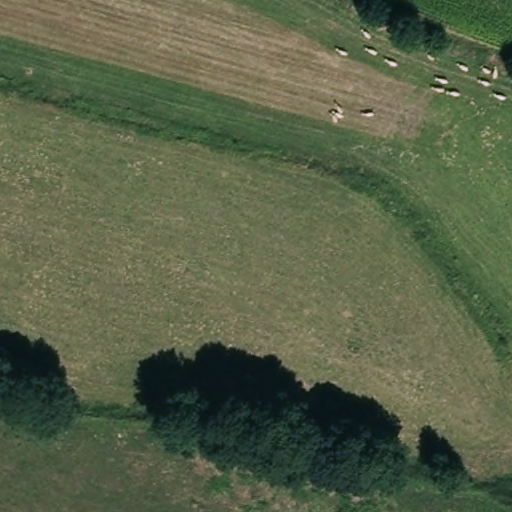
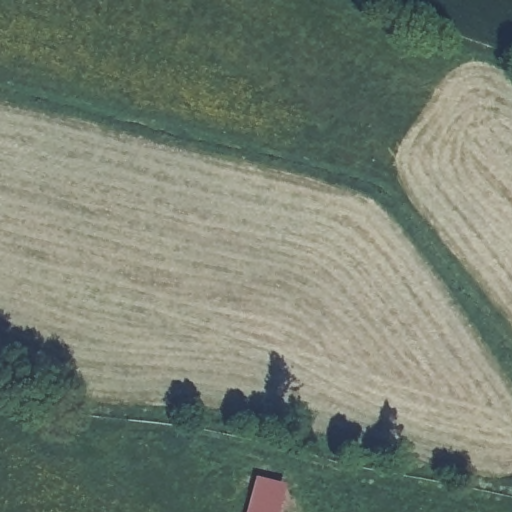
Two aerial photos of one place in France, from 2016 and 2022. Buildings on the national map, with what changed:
new [(255,477),(285,484),(277,512),(245,512),(255,477)]

